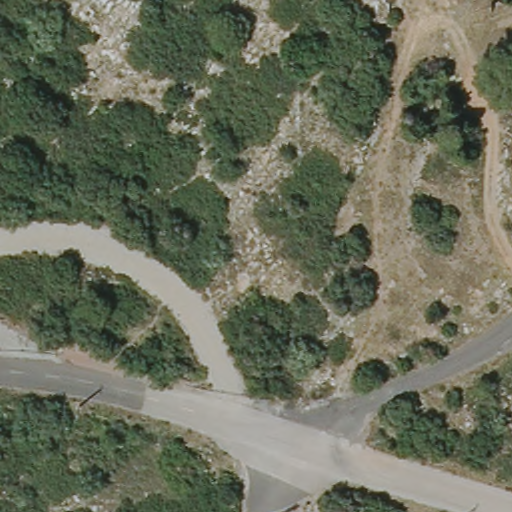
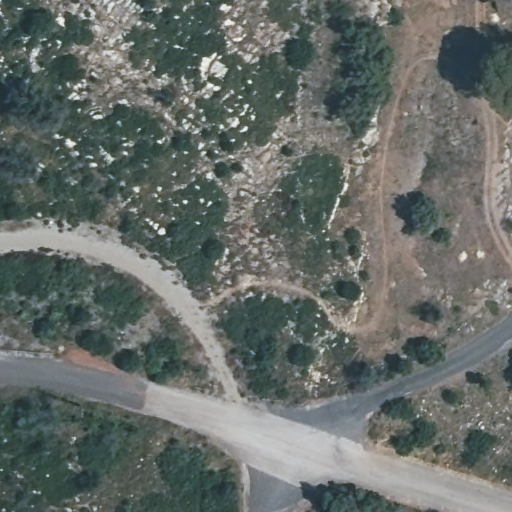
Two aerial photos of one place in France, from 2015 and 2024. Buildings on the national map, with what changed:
unchanged [(504,306),(490,292),(499,284),(512,297),(512,298),(504,306)]

